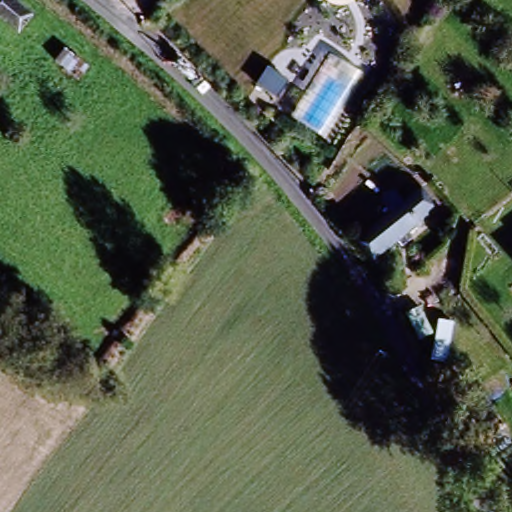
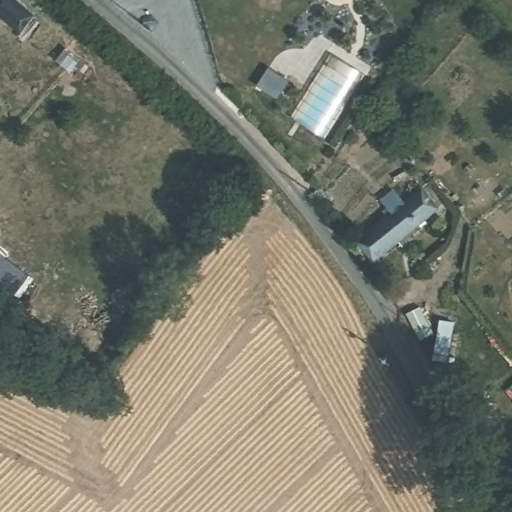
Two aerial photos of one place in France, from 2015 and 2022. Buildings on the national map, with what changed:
unchanged [(19,32),(0,16),(0,0),(14,0),(32,15),(19,32)]
unchanged [(87,67),(78,79),(56,61),(65,49),(87,67)]
unchanged [(353,238),(363,230),(422,184),(438,204),(377,252),(369,258),(353,238)]

